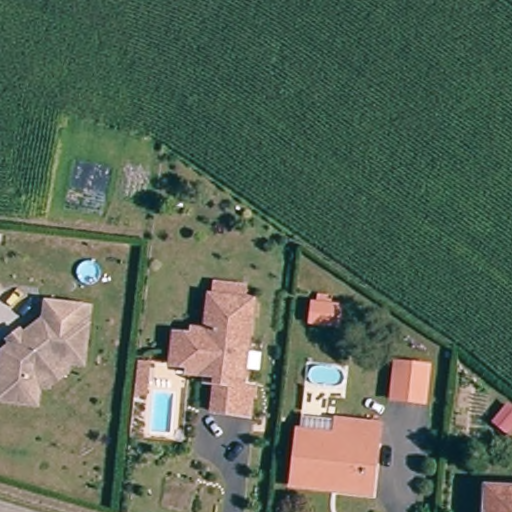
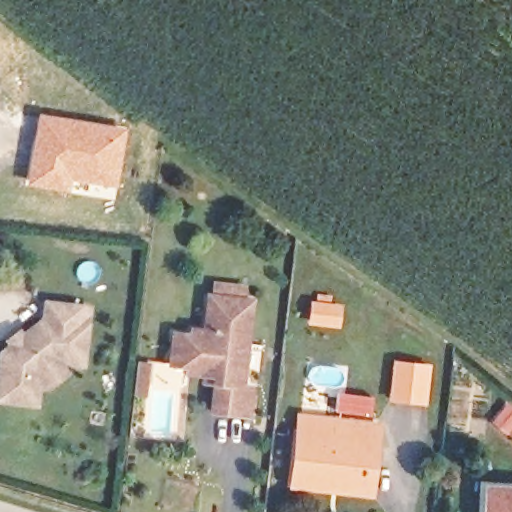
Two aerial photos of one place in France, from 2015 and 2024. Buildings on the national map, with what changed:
new [(37,112),(126,126),(115,190),(71,181),(69,192),(24,185),(37,112)]
unchanged [(349,293),(345,313),(316,308),(320,287),(349,293)]
unchanged [(203,371),(187,369),(187,363),(170,360),(173,330),(191,332),(192,325),(205,327),(207,304),(209,291),(252,296),(251,313),(243,381),(253,383),(250,412),(212,408),(215,382),(202,381),(203,371)]
unchanged [(55,390),(45,389),(43,407),(3,402),(8,355),(19,346),(16,342),(24,335),(28,340),(51,322),(53,306),(96,310),(90,367),(75,365),(74,375),(55,390)]
unchanged [(390,397),(395,358),(428,362),(426,379),(424,401),(411,399),(390,397)]
unchanged [(294,482),(303,433),(341,439),(344,424),(383,431),(381,447),(373,497),(336,490),(294,482)]
unchanged [(512,481),(512,512),(485,512),(485,480),(512,481)]

